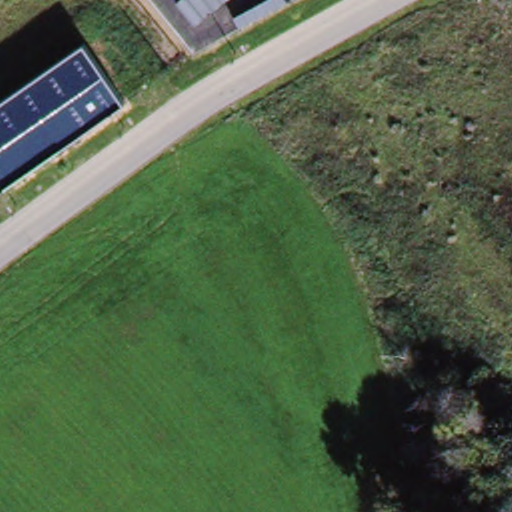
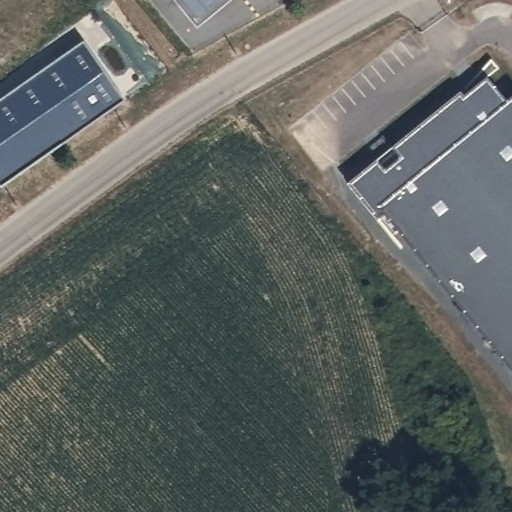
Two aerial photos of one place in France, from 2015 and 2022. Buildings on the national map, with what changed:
unchanged [(180,0),(223,0),(197,21),(180,0)]
unchanged [(0,187),(0,102),(85,42),(124,101),(2,190),(0,187)]
new [(463,98),(487,77),(506,102),(512,97),(512,371),(396,229),(393,232),(405,246),(400,249),(349,184),(459,93),(463,98)]

